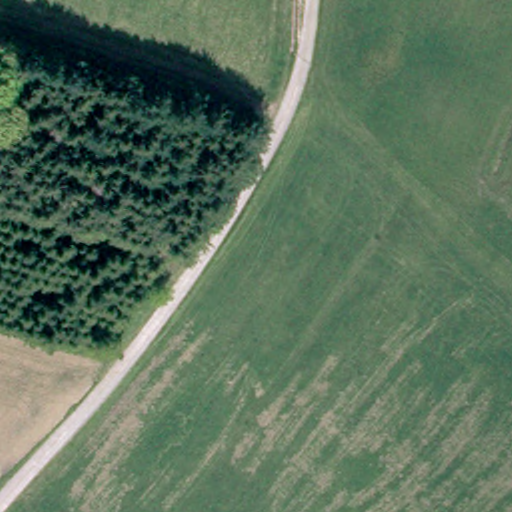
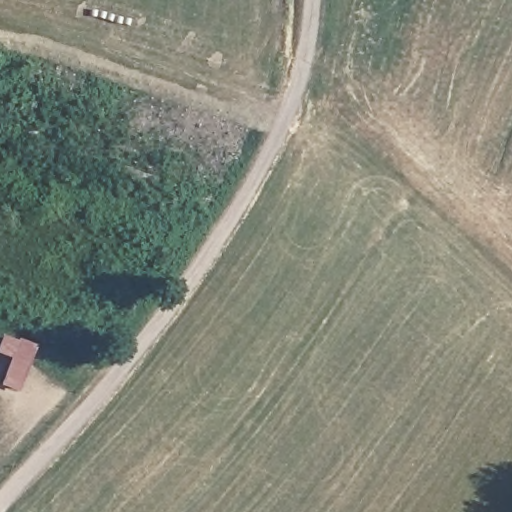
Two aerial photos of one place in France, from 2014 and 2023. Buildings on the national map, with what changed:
new [(37,345),(19,391),(0,384),(17,338),(37,345)]

